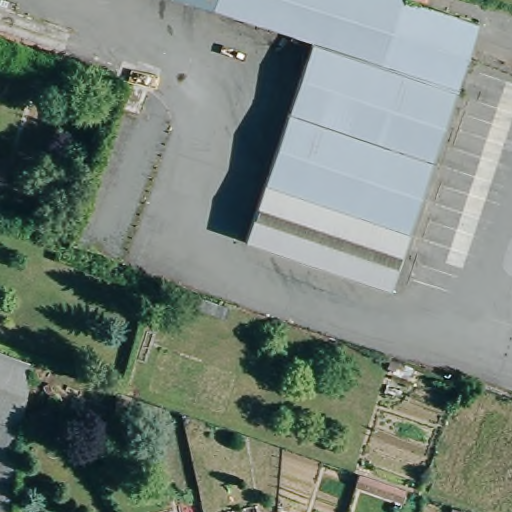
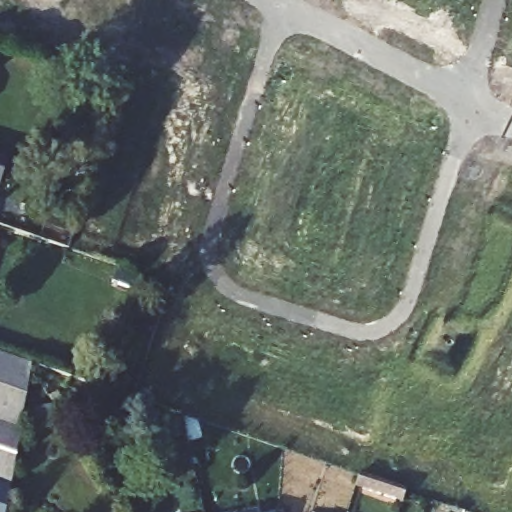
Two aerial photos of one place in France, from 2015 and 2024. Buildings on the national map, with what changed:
demolished [(265,0),(258,20),(195,0),(265,0)]
demolished [(312,37),(258,20),(265,0),(404,0),(385,59),(312,37)]
demolished [(385,59),(404,0),(407,0),(478,23),(440,145),(292,99),(312,37),(385,59)]
demolished [(440,145),(431,172),(291,125),(271,183),(413,229),(414,229),(395,287),(248,240),(292,99),(440,145)]
demolished [(271,183),(291,125),(431,172),(433,173),(413,229),(271,183)]
unchanged [(7,156),(0,176),(0,154),(7,156)]
demolished [(190,295),(218,304),(215,315),(185,306),(190,295)]
unchanged [(21,347),(38,353),(21,461),(17,486),(0,479),(0,339),(21,347)]
unchanged [(398,488),(395,497),(366,488),(370,478),(398,488)]
unchanged [(17,486),(13,512),(0,512),(0,479),(17,486)]

